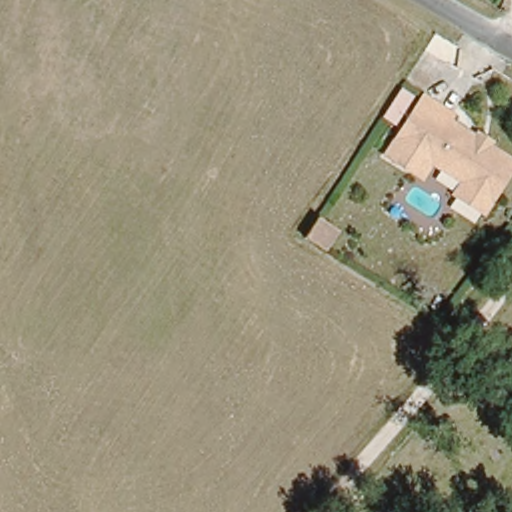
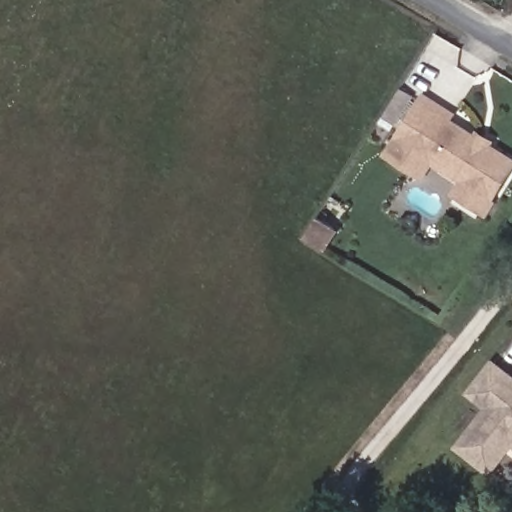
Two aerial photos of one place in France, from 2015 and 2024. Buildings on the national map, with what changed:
unchanged [(455,194),(464,182),(441,166),(437,163),(424,178),(388,155),(426,97),(456,117),(452,124),(476,140),(481,134),(493,144),(491,147),(512,162),(512,174),(493,200),(483,214),(455,194)]
unchanged [(317,209),(336,222),(322,243),(303,232),(317,209)]
new [(492,477),(454,448),(485,410),(467,395),(495,359),(512,373),(512,451),(492,477)]

